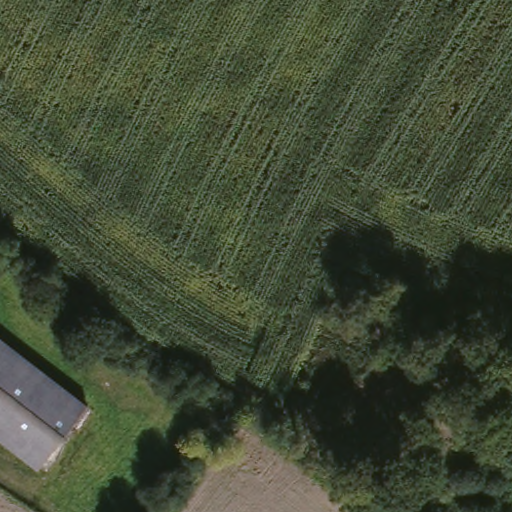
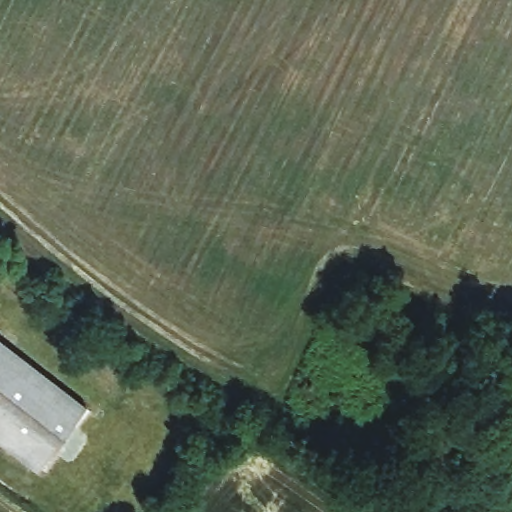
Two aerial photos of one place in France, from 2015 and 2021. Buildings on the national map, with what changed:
unchanged [(0,442),(0,346),(81,411),(34,468),(0,442)]

